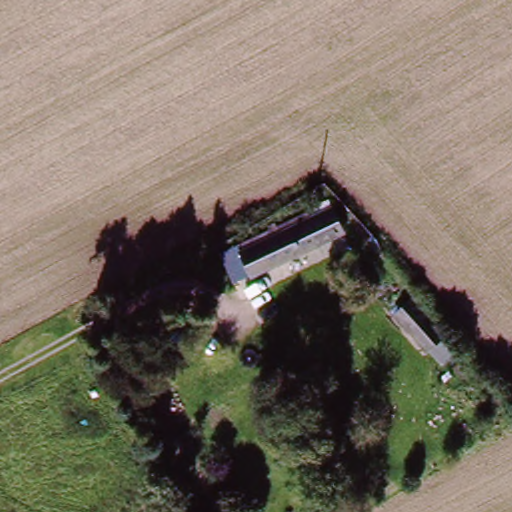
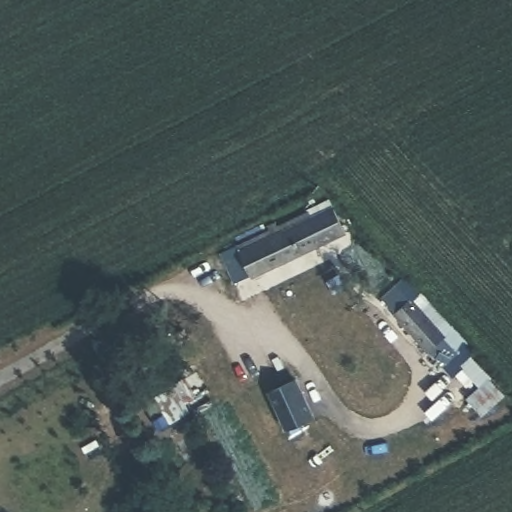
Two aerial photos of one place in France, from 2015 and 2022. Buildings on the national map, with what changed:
unchanged [(235,252),(332,204),(343,228),(248,277),(235,252)]
unchanged [(421,288),(456,332),(423,359),(388,315),(421,288)]
new [(296,380),(313,416),(287,428),(270,391),(296,380)]

